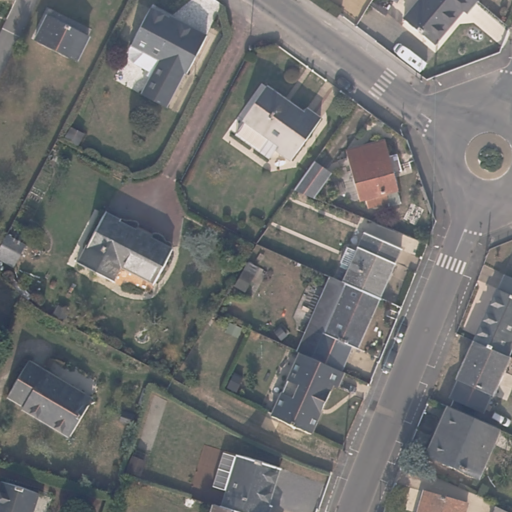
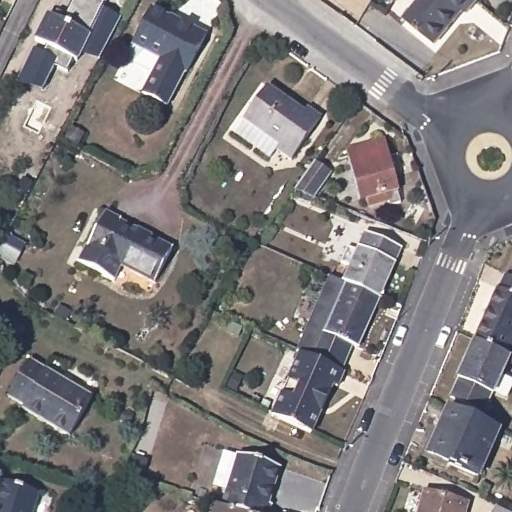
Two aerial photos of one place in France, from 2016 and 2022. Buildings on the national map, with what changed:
unchanged [(387,0),(390,0),(389,1),(387,0)]
unchanged [(461,10),(435,44),(405,21),(420,0),(476,0),(466,14),(461,10)]
unchanged [(142,92),(160,58),(131,43),(150,7),(180,23),(182,20),(205,33),(185,71),(183,70),(165,105),(142,92)]
unchanged [(36,39),(49,15),(89,36),(77,60),(36,39)]
unchanged [(235,132),(244,119),(241,117),(266,85),(303,112),(305,108),(320,119),(290,159),(275,148),(268,157),(235,132)]
unchanged [(388,196),(369,201),(366,192),(360,194),(347,146),(383,136),(401,197),(390,200),(388,196)]
unchanged [(312,157),(327,169),(311,190),(292,182),(312,157)]
unchanged [(123,220),(122,221),(173,248),(156,281),(123,263),(114,280),(80,263),(107,212),(123,220)]
unchanged [(346,280),(351,267),(342,263),(348,247),(357,252),(366,232),(401,248),(381,296),(348,281),(346,280)]
unchanged [(381,296),(358,347),(351,344),(340,368),(299,347),(332,273),(346,280),(348,281),(381,296)]
unchanged [(500,290),(506,275),(512,278),(512,339),(505,354),(475,341),(497,290),(500,290)]
unchanged [(505,354),(510,357),(493,393),(491,392),(485,410),(451,396),(460,376),(474,341),(475,341),(505,354)]
unchanged [(340,368),(343,370),(336,384),(331,382),(309,429),(269,409),(299,347),(340,368)]
unchanged [(24,402),(7,392),(30,357),(91,396),(67,434),(22,404),(24,402)]
unchanged [(495,428),(474,476),(423,454),(444,406),(495,428)]
unchanged [(242,454),(280,467),(270,501),(273,502),(270,512),(243,512),(225,506),(242,454)]
unchanged [(30,492),(25,512),(0,512),(0,482),(30,492)]
unchanged [(420,492),(465,504),(463,512),(413,512),(420,492)]
unchanged [(243,512),(214,512),(216,503),(225,506),(243,512)]
unchanged [(512,512),(496,512),(498,505),(512,511),(512,512)]

